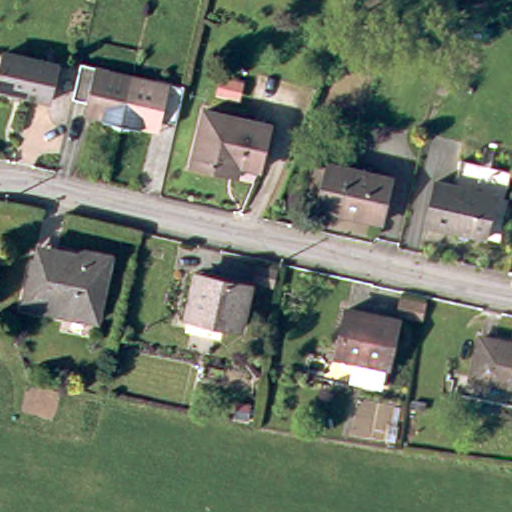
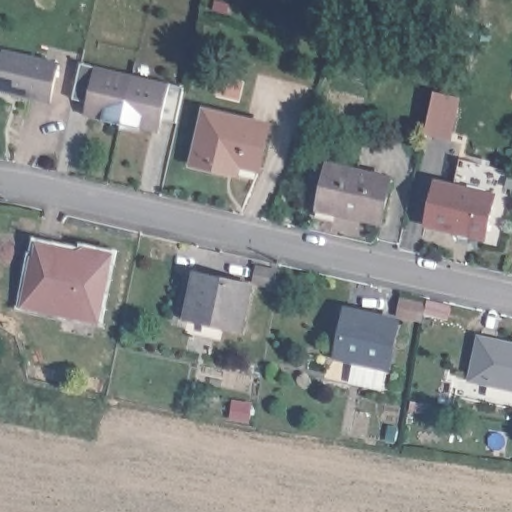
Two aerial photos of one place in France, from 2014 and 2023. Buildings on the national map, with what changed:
unchanged [(54,64),(45,101),(0,91),(0,51),(54,64)]
unchanged [(136,129),(116,125),(98,120),(98,119),(80,115),(83,102),(68,98),(73,81),(76,63),(105,69),(128,75),(129,75),(151,80),(181,87),(179,92),(172,122),(158,119),(154,132),(136,128),(136,129)]
unchanged [(222,77),(243,82),(239,99),(218,94),(222,77)]
new [(436,93),(456,97),(447,137),(428,133),(436,93)]
unchanged [(212,170),(188,164),(201,110),(266,125),(255,169),(235,165),(233,175),(212,170)]
unchanged [(421,224),(431,181),(451,186),(457,160),(497,169),(506,171),(501,197),(491,195),(481,238),(465,234),(464,238),(454,236),(454,232),(421,224)]
unchanged [(319,203),(328,164),(392,179),(382,223),(349,215),(318,208),(319,203)]
unchanged [(106,251),(93,315),(19,300),(29,253),(32,243),(69,251),(78,252),(80,245),(106,251)]
unchanged [(265,271),(262,284),(246,281),(249,267),(265,271)]
unchanged [(240,286),(231,329),(176,317),(187,275),(240,286)]
unchanged [(422,304),(419,321),(396,316),(399,298),(422,304)]
unchanged [(394,321),(383,367),(382,367),(378,387),(346,380),(349,360),(331,356),(342,310),(394,321)]
unchanged [(481,338),(512,345),(512,388),(472,378),(481,338)]

